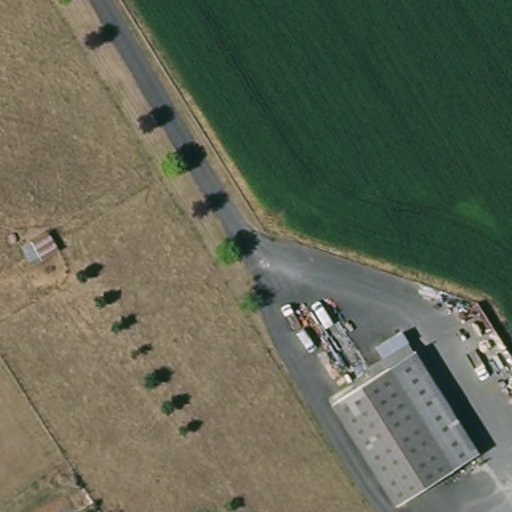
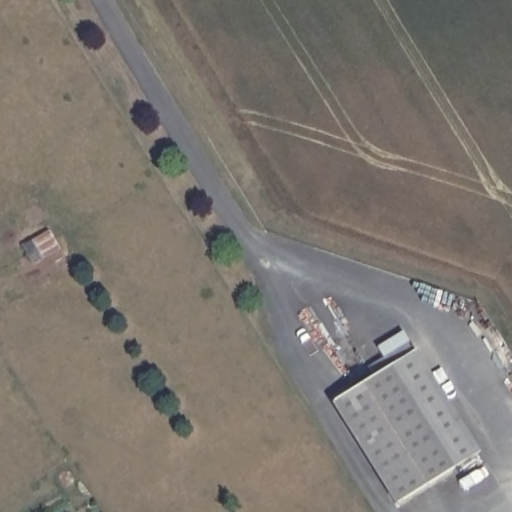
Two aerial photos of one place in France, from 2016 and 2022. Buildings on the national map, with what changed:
unchanged [(420,351),(485,453),(402,505),(337,403),(420,351)]

